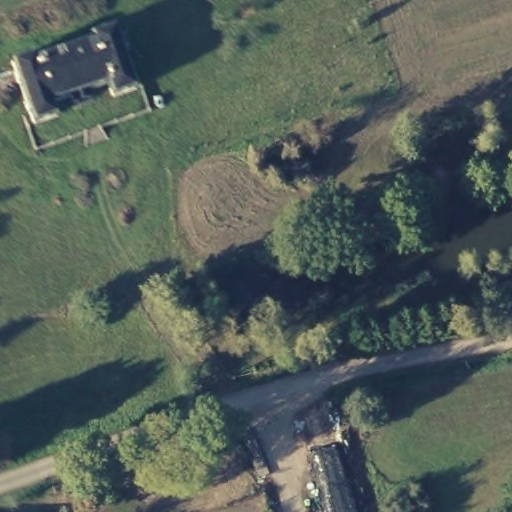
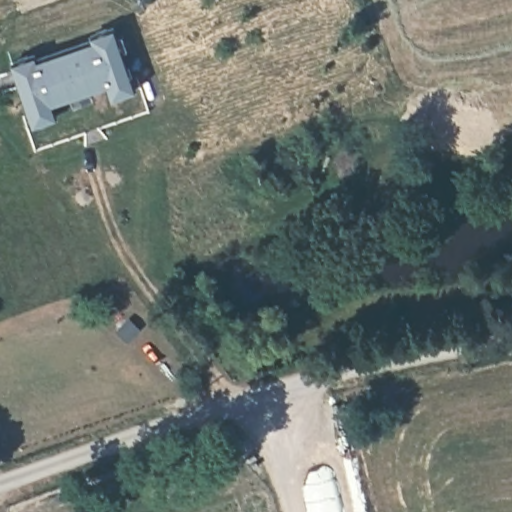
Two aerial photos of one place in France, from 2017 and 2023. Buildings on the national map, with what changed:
unchanged [(38,53),(93,35),(92,30),(116,22),(137,82),(113,90),(110,80),(86,89),(88,92),(74,97),(73,94),(51,101),(54,111),(33,118),(13,55),(36,48),(38,53)]

